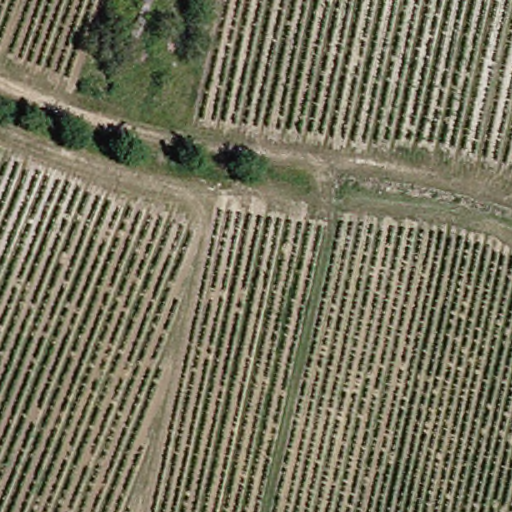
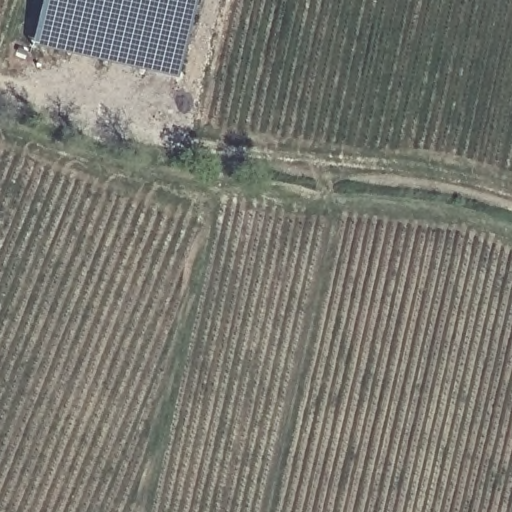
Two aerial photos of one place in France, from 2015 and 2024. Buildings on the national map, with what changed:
new [(177,78),(40,47),(51,0),(194,0),(177,78)]

